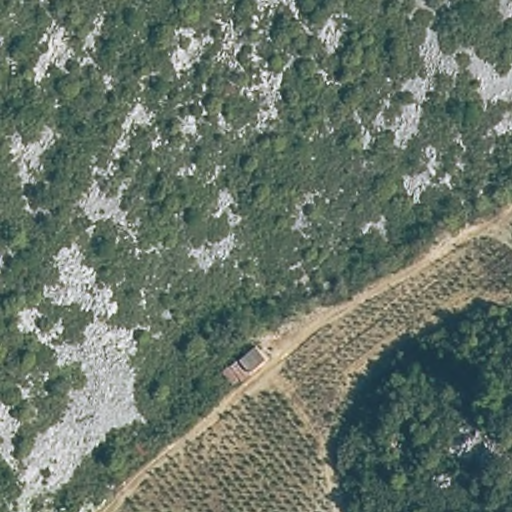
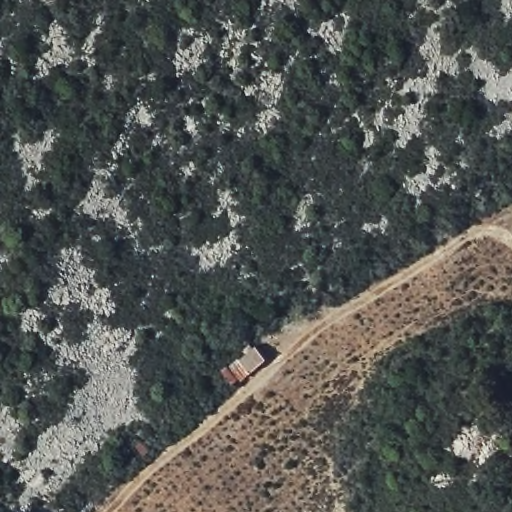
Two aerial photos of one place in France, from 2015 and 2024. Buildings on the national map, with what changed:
unchanged [(265,355),(230,385),(219,365),(255,341),(265,355)]

